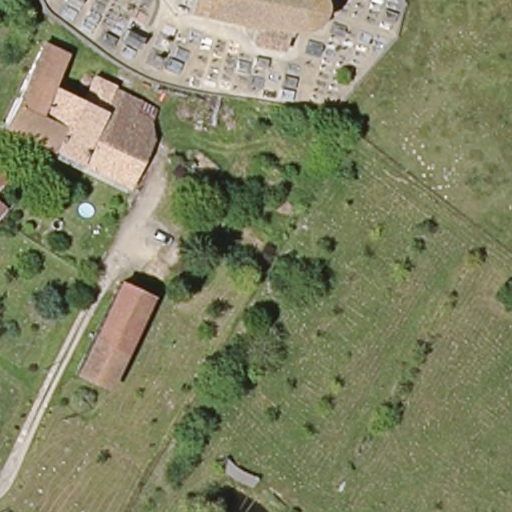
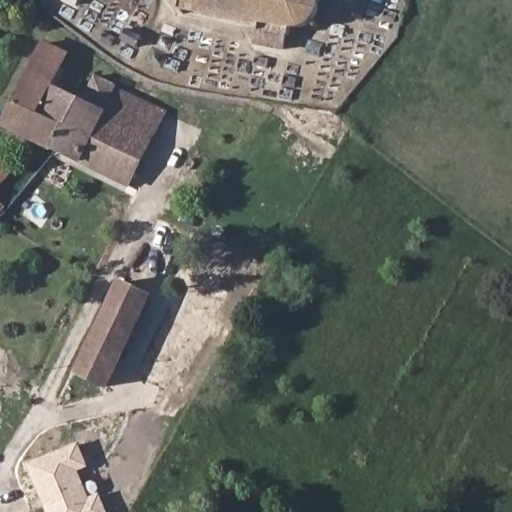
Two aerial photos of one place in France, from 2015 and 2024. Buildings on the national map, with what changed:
unchanged [(326,4),(325,11),(318,21),(309,26),(296,29),(291,47),(263,42),(265,26),(187,11),(190,0),(324,0),(326,4)]
unchanged [(46,111),(70,123),(72,125),(63,144),(60,150),(14,126),(52,51),(72,61),(70,66),(58,89),(46,111)]
unchanged [(158,139),(132,186),(60,150),(63,144),(72,125),(70,123),(46,111),(58,89),(89,104),(103,79),(149,99),(146,109),(160,116),(151,135),(158,139)]
unchanged [(290,189),(294,181),(311,155),(331,167),(312,201),(290,189)]
unchanged [(1,186),(11,171),(21,177),(10,192),(1,186)]
unchanged [(5,214),(0,220),(0,221),(0,210),(5,214)]
unchanged [(157,297),(113,392),(78,377),(124,282),(157,297)]
new [(78,446),(87,467),(78,472),(89,498),(98,496),(105,512),(50,512),(31,466),(78,446)]

